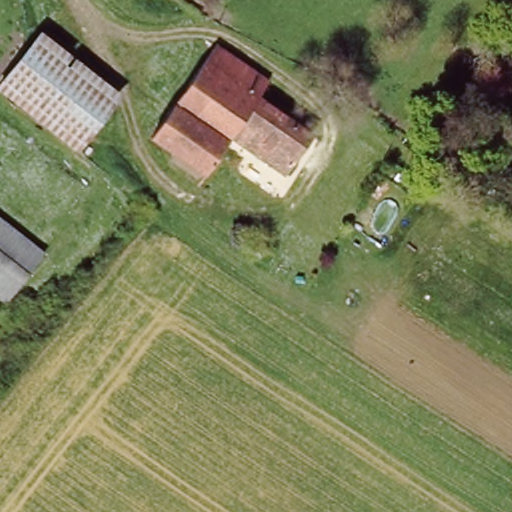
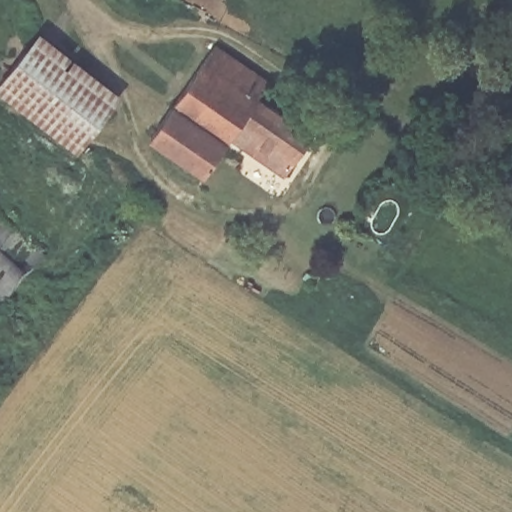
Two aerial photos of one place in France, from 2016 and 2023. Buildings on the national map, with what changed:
unchanged [(121,100),(87,143),(8,80),(42,38),(121,100)]
unchanged [(165,155),(176,141),(162,132),(225,51),(275,91),(265,104),(267,105),(237,146),(235,144),(215,171),(204,185),(165,155)]
unchanged [(316,143),(285,182),(237,146),(267,105),(316,143)]
unchanged [(13,299),(0,289),(0,210),(51,249),(13,299)]

